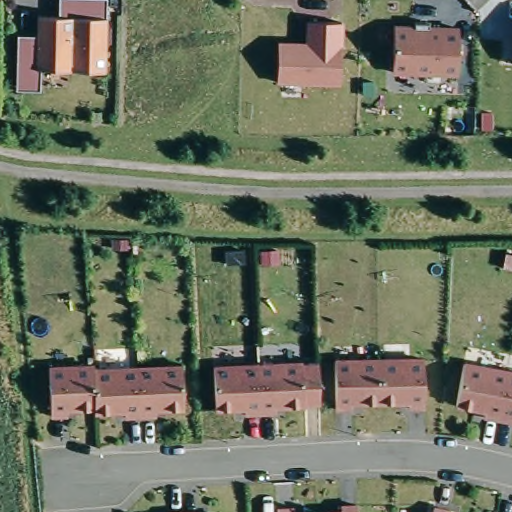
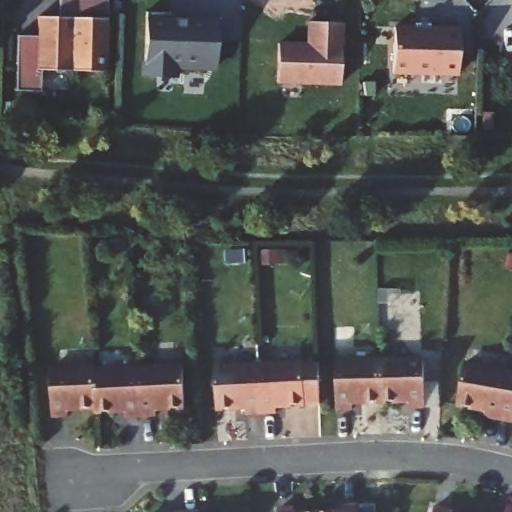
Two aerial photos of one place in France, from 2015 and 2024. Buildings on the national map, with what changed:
unchanged [(17,36),(37,36),(38,18),(58,18),(58,0),(106,0),(105,73),(41,70),(41,77),(40,92),(16,91),(17,36)]
new [(169,14),(169,19),(185,19),(185,16),(217,18),(216,68),(174,66),(174,79),(144,78),(146,13),(169,14)]
unchanged [(413,24),(413,19),(430,21),(430,26),(458,27),(457,75),(392,73),(394,26),(413,24)]
unchanged [(306,40),(307,21),(342,23),(339,83),(277,81),(278,40),(306,40)]
unchanged [(424,362),(425,409),(409,410),(408,404),(380,404),(379,363),(424,362)]
unchanged [(379,363),(380,404),(352,405),(352,412),(336,412),(335,364),(379,363)]
unchanged [(302,366),(304,408),(276,409),(276,416),(260,416),(258,369),(302,366)]
unchanged [(484,419),(485,413),(456,408),(463,367),(507,374),(499,422),(484,419)]
unchanged [(68,412),(68,418),(52,419),(49,372),(94,369),(94,373),(96,411),(68,412)]
unchanged [(182,369),(184,410),(155,412),(156,418),(140,419),(138,371),(182,369)]
unchanged [(258,369),(260,416),(245,417),(245,411),(216,412),(214,371),(258,369)]
unchanged [(138,371),(140,419),(125,419),(125,413),(96,414),(96,411),(94,373),(138,371)]
unchanged [(512,375),(512,424),(499,422),(507,374),(512,375)]
unchanged [(341,508),(357,508),(357,512),(341,512),(341,508)]
unchanged [(434,509),(445,512),(433,512),(434,509)]
unchanged [(293,511),(293,512),(277,512),(293,511)]

